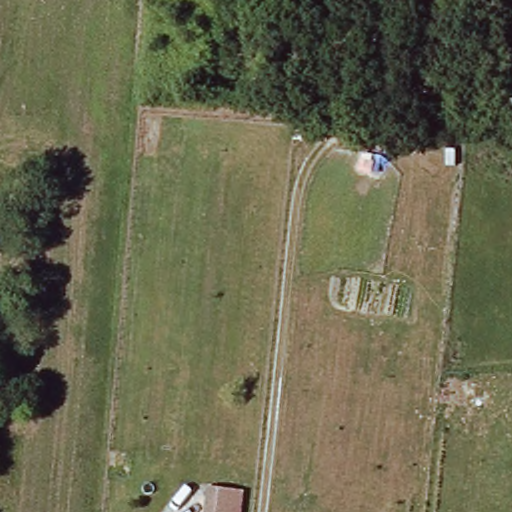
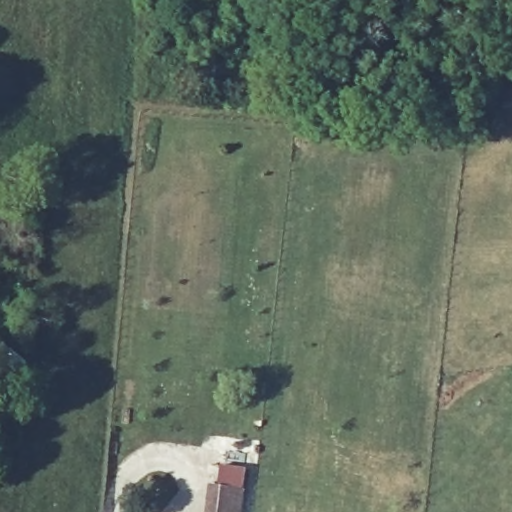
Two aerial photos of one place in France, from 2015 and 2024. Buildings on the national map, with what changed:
unchanged [(211,489),(246,493),(244,512),(208,512),(211,489)]

